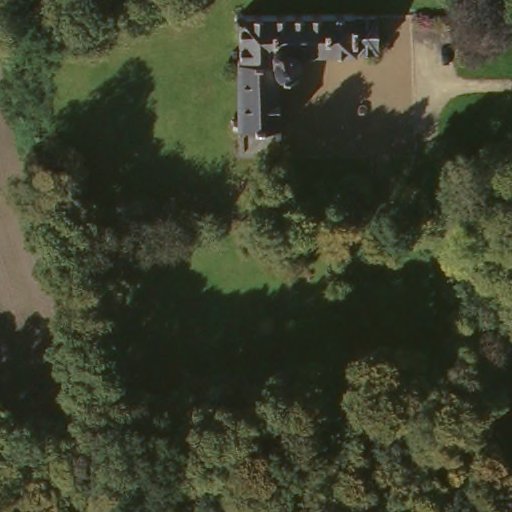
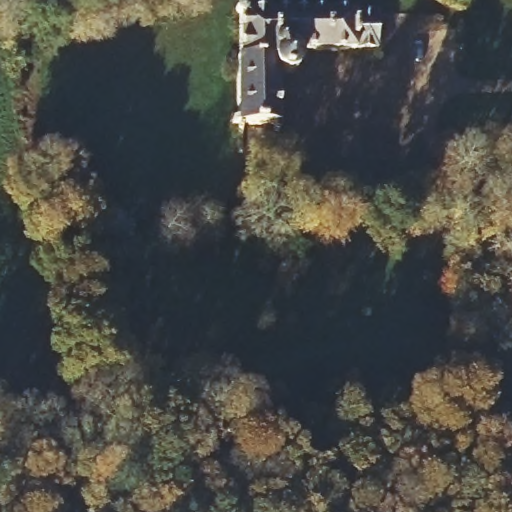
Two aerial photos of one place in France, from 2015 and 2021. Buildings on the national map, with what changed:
unchanged [(239,64),(230,64),(232,45),(240,45),(240,19),(387,13),(389,53),(311,57),(310,67),(304,72),(292,70),(290,142),(240,142),(239,64)]

